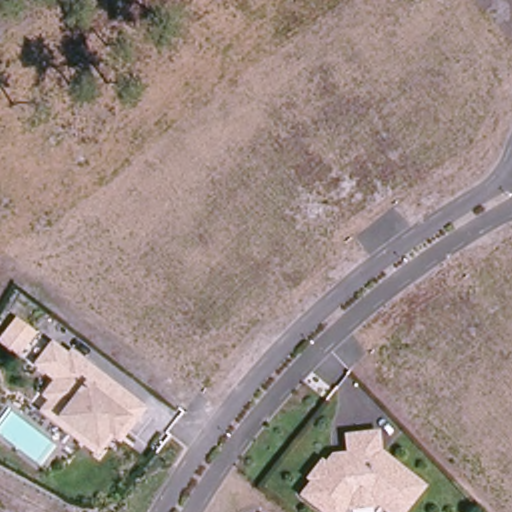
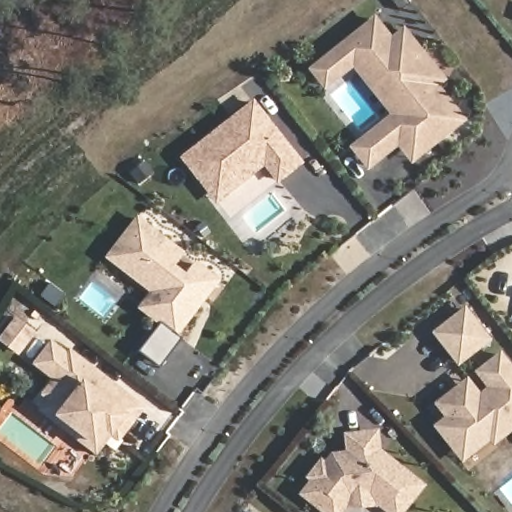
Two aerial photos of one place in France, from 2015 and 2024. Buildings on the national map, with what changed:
new [(411,164),(397,146),(366,171),(347,146),(389,113),(353,67),(324,90),(308,69),(376,16),(391,35),(403,25),(446,80),(438,85),(466,120),(411,164)]
new [(277,182),(263,167),(217,205),(177,157),(253,97),(303,162),(277,182)]
new [(178,336),(182,338),(160,367),(140,351),(157,326),(135,308),(147,292),(104,257),(135,214),(184,252),(175,265),(185,273),(195,261),(220,279),(178,336)]
new [(468,309),(492,338),(462,362),(440,332),(468,309)]
new [(16,320),(35,335),(22,352),(3,337),(16,320)]
unchanged [(117,444),(111,439),(96,456),(32,406),(50,382),(32,367),(47,340),(62,351),(68,347),(147,408),(117,444)]
new [(471,380),(476,386),(483,396),(494,387),(482,372),(504,353),(512,364),(512,423),(494,437),(486,425),(462,443),(446,422),(452,417),(441,403),(458,390),(471,380)]
new [(446,422),(462,443),(486,425),(494,437),(512,423),(512,430),(470,463),(441,426),(446,422)]
unchanged [(386,512),(362,493),(342,499),(327,512),(323,512),(301,496),(306,478),(325,474),(325,458),(344,453),(345,438),(375,433),(378,450),(422,486),(402,512),(386,512)]

